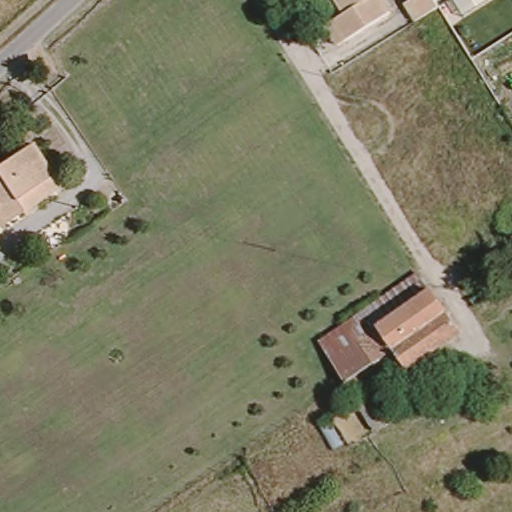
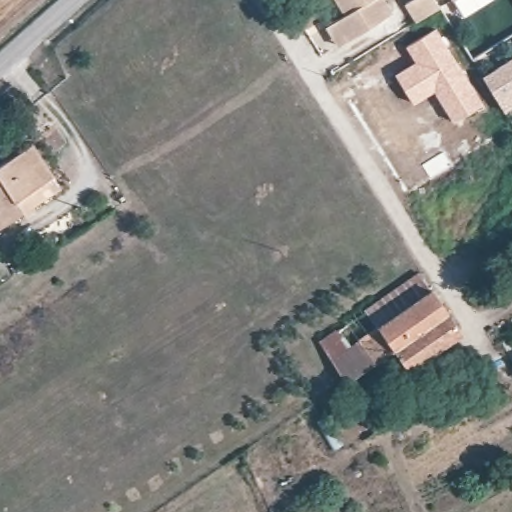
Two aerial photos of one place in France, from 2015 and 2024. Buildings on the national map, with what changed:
unchanged [(331,24),(348,13),(339,0),(381,0),(391,16),(343,45),(336,49),(323,29),(331,24)]
unchanged [(412,0),(429,0),(435,10),(415,24),(402,6),(412,0)]
new [(414,60),(405,45),(435,27),(483,102),(452,121),(433,91),(413,104),(394,73),(414,60)]
new [(508,113),(489,83),(512,69),(512,111),(508,113)]
unchanged [(34,209),(37,214),(27,220),(25,216),(0,232),(0,169),(33,146),(54,180),(61,191),(34,209)]
unchanged [(373,404),(385,424),(375,430),(345,385),(344,383),(346,382),(321,341),(420,271),(447,311),(462,333),(410,370),(407,365),(385,381),(377,370),(361,382),(374,403),(373,404)]

